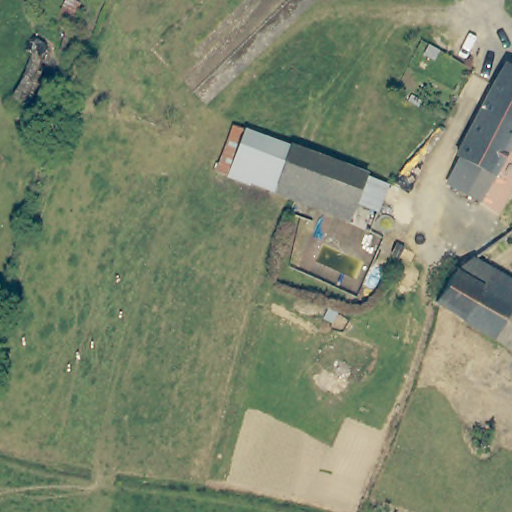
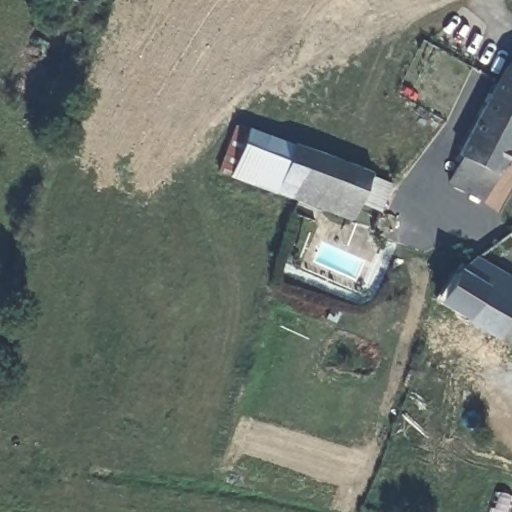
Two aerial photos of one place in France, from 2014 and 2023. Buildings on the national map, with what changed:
unchanged [(54,3),(59,10),(59,19),(56,23),(46,26),(40,24),(36,18),(36,13),(39,3),(44,1),(54,3)]
unchanged [(482,201),(448,181),(460,156),(457,155),(509,61),(512,63),(512,147),(482,201)]
unchanged [(360,204),(356,216),(324,204),(309,198),(298,194),(279,187),(277,186),(222,166),(229,150),(239,123),(251,127),(270,134),(292,142),(296,143),(335,158),(371,171),(370,174),(394,183),(384,210),(361,202),(360,204)]
unchanged [(483,329),(440,304),(444,289),(454,271),(465,260),(473,256),(512,278),(512,345),(483,329)]

